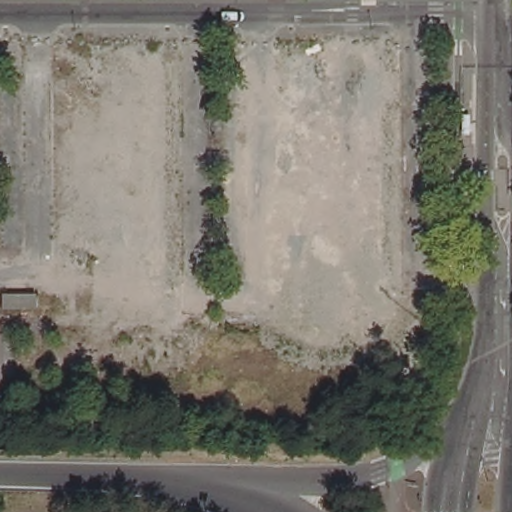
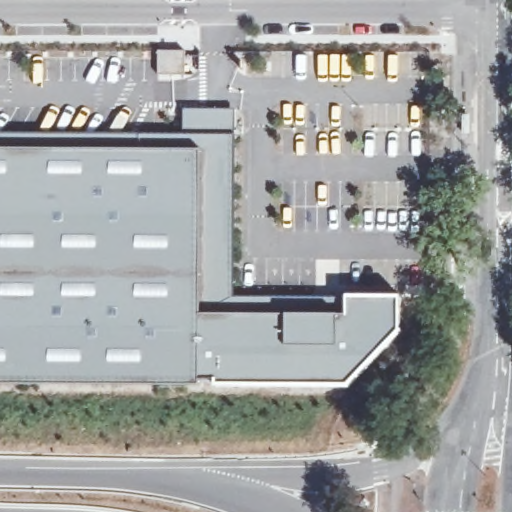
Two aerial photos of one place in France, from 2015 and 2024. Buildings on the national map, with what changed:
new [(226,109),(225,133),(197,133),(197,109),(226,109)]
new [(232,149),(234,296),(348,295),(402,295),(402,338),(349,391),(0,387),(0,149),(232,149)]
demolished [(37,293),(37,307),(4,307),(4,293),(37,293)]

